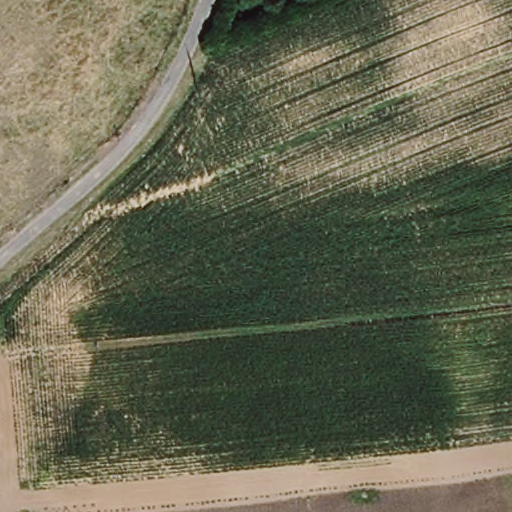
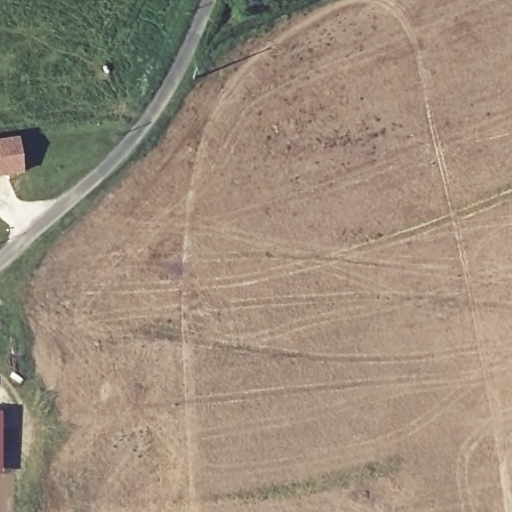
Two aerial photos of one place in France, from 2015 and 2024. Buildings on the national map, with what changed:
new [(24,173),(0,177),(0,138),(19,136),(24,173)]

